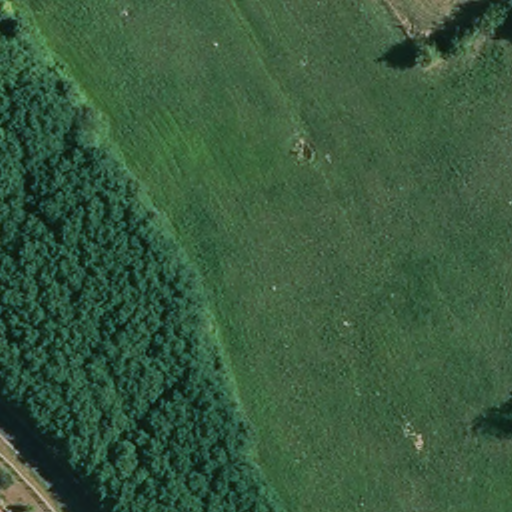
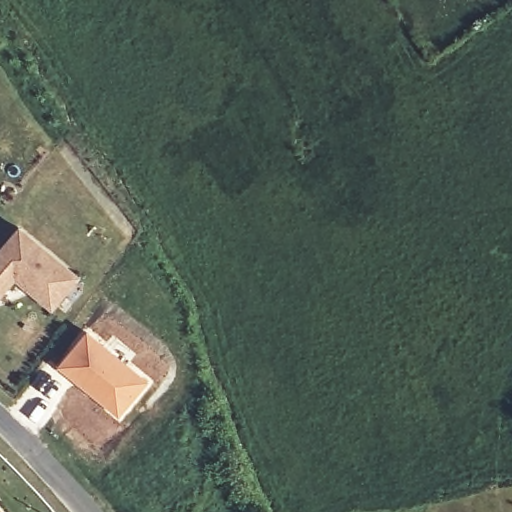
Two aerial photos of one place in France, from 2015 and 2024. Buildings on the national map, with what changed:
new [(15,279),(0,295),(0,253),(20,230),(77,279),(55,306),(51,310),(15,279)]
new [(86,330),(149,381),(117,420),(55,367),(86,330)]

